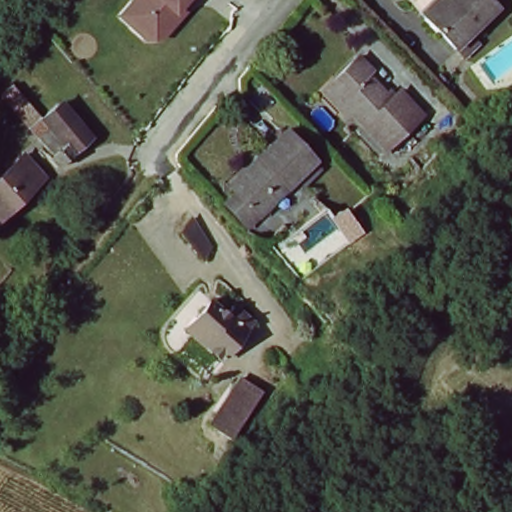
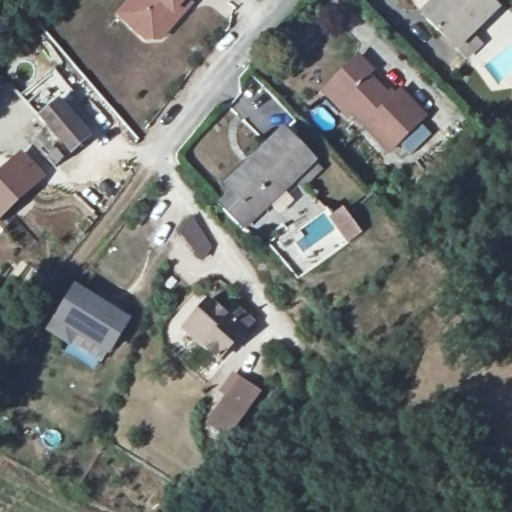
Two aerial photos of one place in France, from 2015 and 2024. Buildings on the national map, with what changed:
unchanged [(164,37),(140,36),(118,16),(132,0),(195,0),(164,37)]
unchanged [(502,9),(456,51),(427,21),(420,15),(436,0),(449,0),(494,0),(502,9)]
unchanged [(376,70),(370,74),(395,100),(405,92),(427,116),(391,148),(357,111),(350,119),(324,91),(340,77),(362,56),(376,70)]
unchanged [(91,137),(75,151),(57,167),(45,153),(29,132),(36,126),(0,90),(0,86),(11,75),(46,116),(60,103),(91,137)]
unchanged [(253,161),(284,134),(313,166),(254,220),(231,195),(225,187),(253,161)]
unchanged [(24,152),(46,176),(0,221),(0,174),(24,152)]
new [(74,285),(131,318),(110,355),(77,335),(70,345),(47,331),(74,285)]
unchanged [(208,298),(226,313),(233,303),(253,320),(222,359),(185,328),(208,298)]
unchanged [(225,437),(203,420),(236,375),(259,392),(225,437)]

